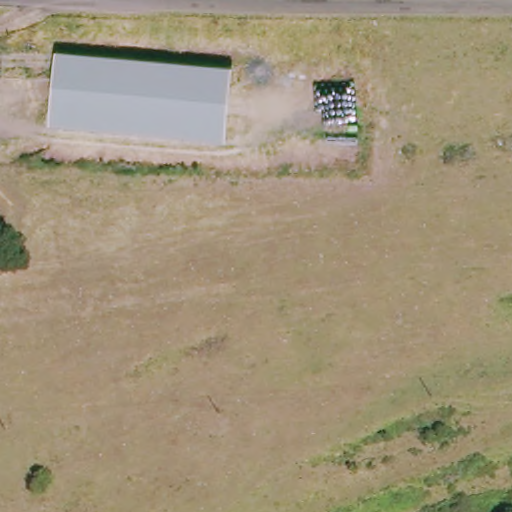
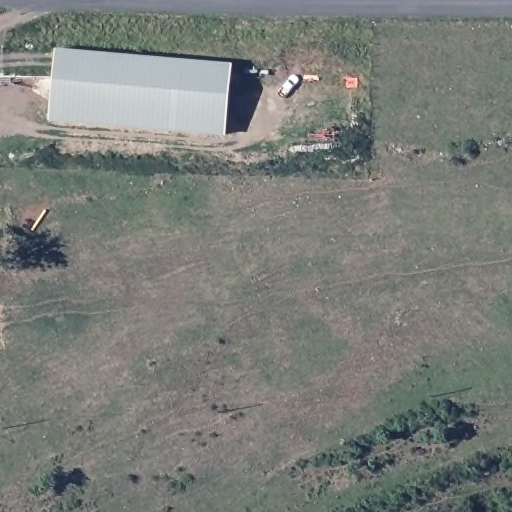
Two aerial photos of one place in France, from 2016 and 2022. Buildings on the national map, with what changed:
unchanged [(238,62),(233,132),(57,122),(60,52),(238,62)]

